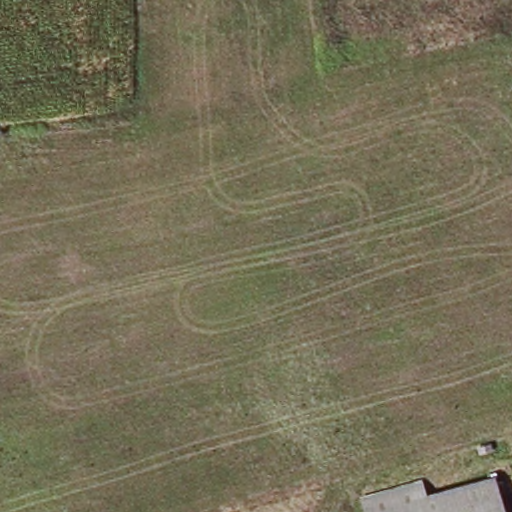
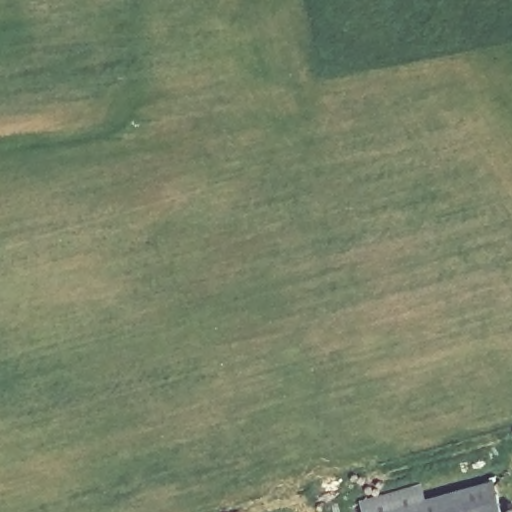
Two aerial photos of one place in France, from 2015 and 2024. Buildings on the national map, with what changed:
unchanged [(367,502),(422,487),(427,502),(493,483),(501,512),(370,512),(367,502)]

